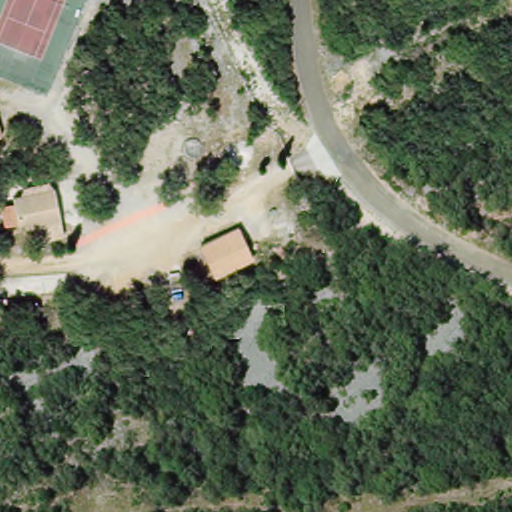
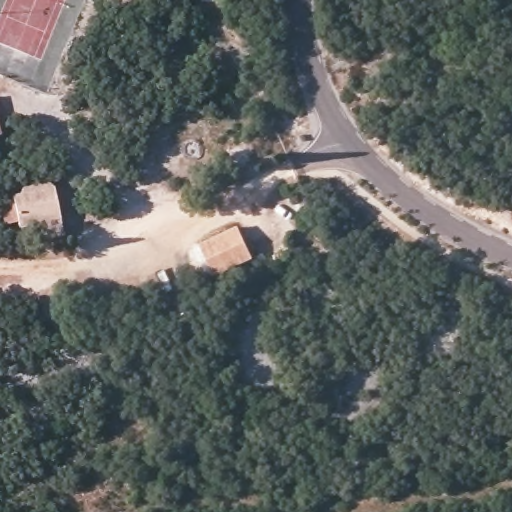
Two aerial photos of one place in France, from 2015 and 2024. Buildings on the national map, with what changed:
unchanged [(0,145),(0,112),(6,144),(0,145)]
unchanged [(63,189),(70,222),(34,230),(22,197),(63,189)]
unchanged [(237,230),(249,262),(212,280),(200,247),(237,230)]

